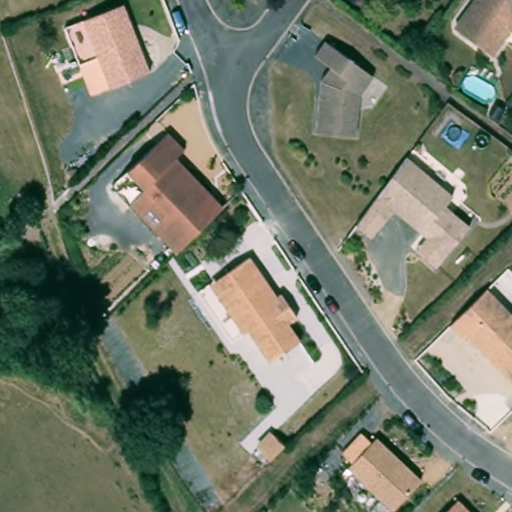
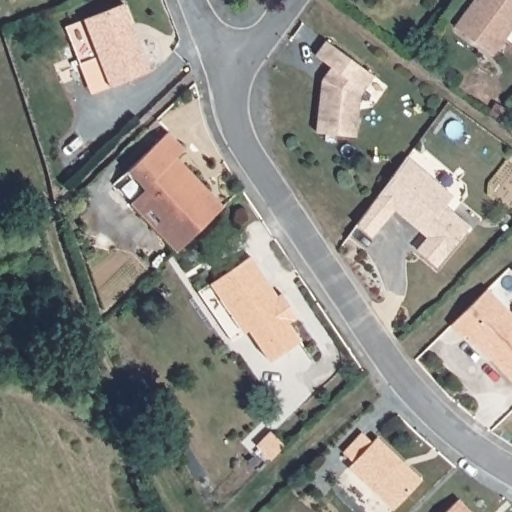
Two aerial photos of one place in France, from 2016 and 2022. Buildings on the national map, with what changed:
unchanged [(127,0),(152,68),(112,83),(87,15),(127,0)]
unchanged [(507,41),(497,57),(481,45),(462,31),(461,24),(478,0),(512,0),(512,45),(507,41)]
unchanged [(308,64),(318,49),(367,84),(353,103),(357,144),(317,148),(316,108),(315,88),(324,75),(308,64)]
unchanged [(150,188),(132,170),(173,131),(190,149),(182,156),(229,206),(187,245),(181,251),(135,202),(150,188)]
unchanged [(437,233),(411,214),(398,206),(396,209),(378,197),(402,165),(410,155),(459,191),(452,201),(478,220),(447,262),(432,251),(427,247),(437,233)]
unchanged [(256,250),(284,290),(288,287),(290,290),(305,311),(296,317),(308,335),(277,356),(256,324),(252,326),(251,327),(226,291),(242,280),(233,266),(256,250)]
unchanged [(233,266),(242,280),(226,291),(251,327),(239,336),(204,286),(233,266)]
unchanged [(478,298),(480,297),(512,330),(512,392),(510,394),(460,343),(456,346),(443,333),(478,298)]
unchanged [(421,480),(392,511),(346,467),(376,438),(421,480)]
unchanged [(466,512),(449,512),(458,503),(466,512)]

